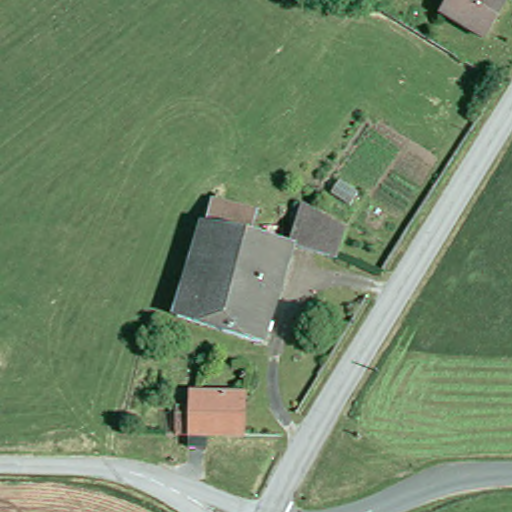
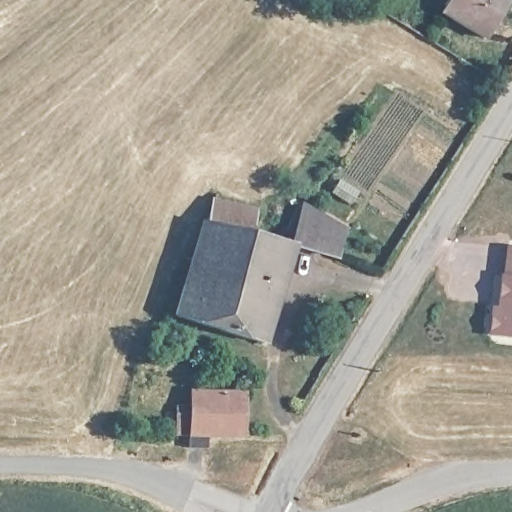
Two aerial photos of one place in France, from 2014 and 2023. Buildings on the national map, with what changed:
unchanged [(442,19),(454,0),(505,0),(508,2),(481,43),(442,19)]
unchanged [(299,238),(265,351),(180,327),(217,204),(223,183),(232,185),(263,195),(261,201),(257,215),(302,229),(299,238)]
unchanged [(350,232),(343,255),(299,238),(302,229),(306,217),(350,232)]
new [(512,246),(512,337),(488,334),(491,306),(497,306),(500,272),(503,273),(505,245),(512,246)]
unchanged [(184,418),(193,418),(193,396),(248,396),(248,438),(193,437),(184,437),(184,418)]

